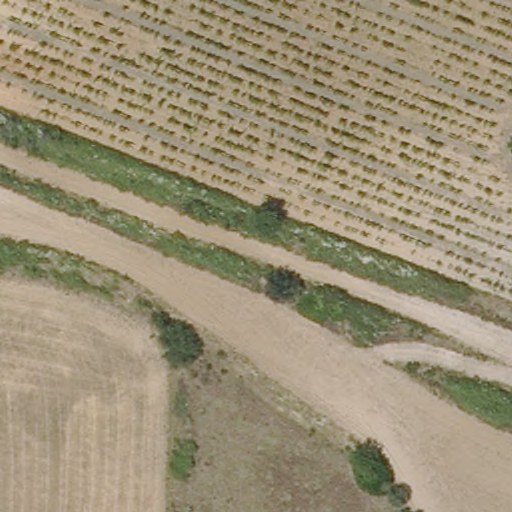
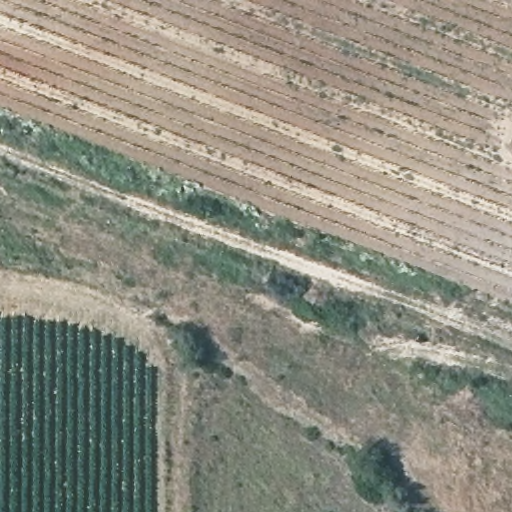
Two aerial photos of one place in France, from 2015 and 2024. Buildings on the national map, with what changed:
[]

